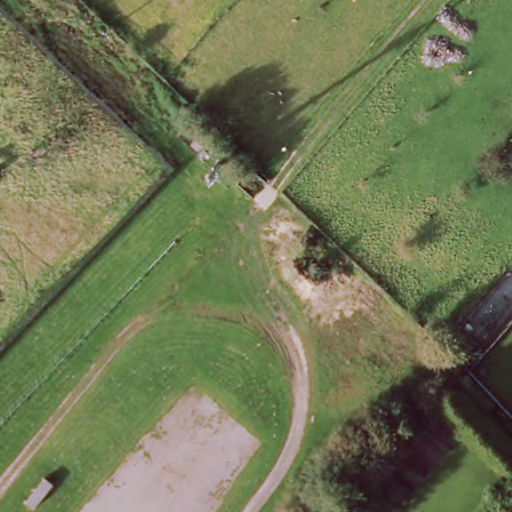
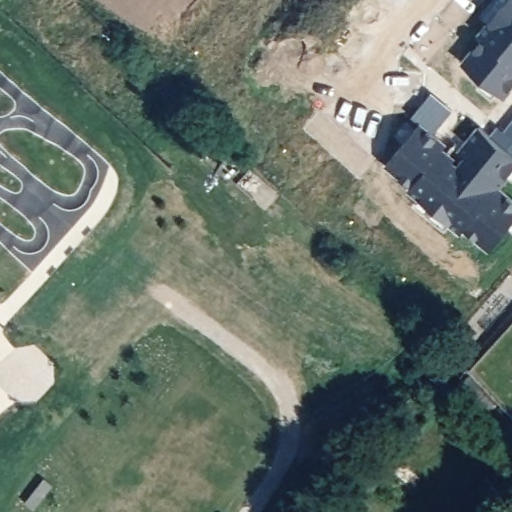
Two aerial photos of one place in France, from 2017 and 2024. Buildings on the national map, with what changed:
new [(462,62),(472,48),(474,50),(483,39),(476,33),(487,20),(490,22),(508,0),(512,0),(512,90),(505,99),(462,62)]
new [(512,119),(512,172),(501,186),(512,195),(512,223),(491,250),(466,231),(462,235),(449,224),(445,227),(416,204),(419,202),(407,192),(412,187),(385,166),(420,123),(412,116),(432,92),(452,110),(435,131),(448,142),(445,147),(456,156),(480,125),(490,135),(498,125),(504,130),(512,119)]

